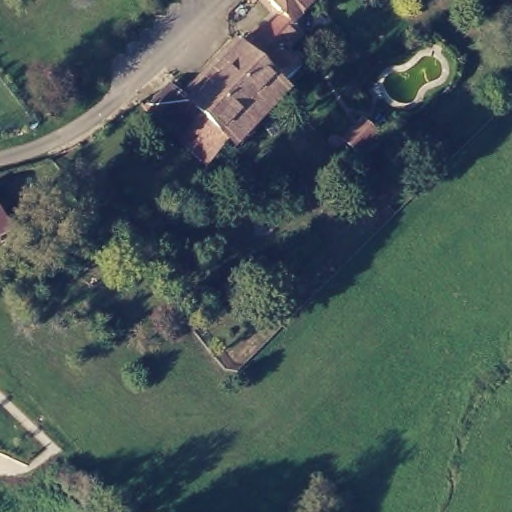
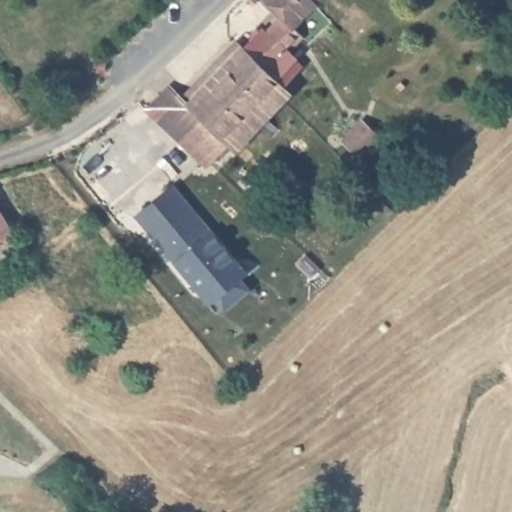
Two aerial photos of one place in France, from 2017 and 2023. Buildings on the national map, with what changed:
unchanged [(289,16),(274,0),(320,0),(319,2),(295,22),(290,27),(285,20),(289,16)]
unchanged [(233,145),(226,139),(208,157),(152,102),(170,84),(189,101),(264,25),(301,62),(284,81),(289,87),(233,145)]
unchanged [(387,142),(369,161),(356,150),(373,130),(387,142)]
new [(136,217),(173,186),(247,272),(208,305),(136,217)]
new [(0,240),(0,210),(13,232),(0,240)]

